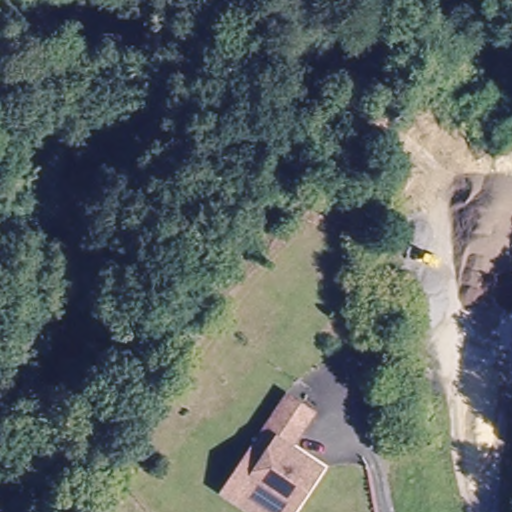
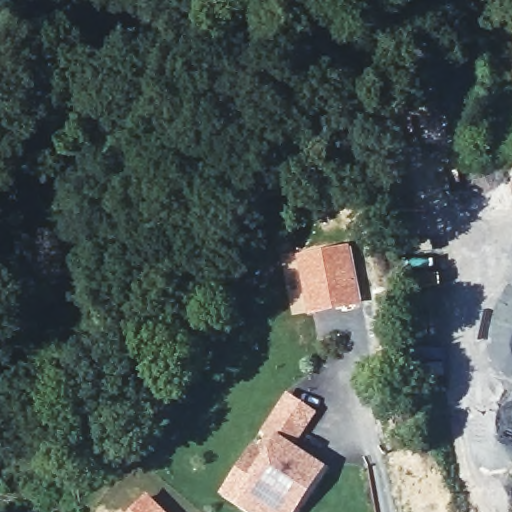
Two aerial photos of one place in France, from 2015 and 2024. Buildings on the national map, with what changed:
new [(351,244),(363,303),(307,313),(295,255),(351,244)]
new [(431,258),(433,272),(439,271),(440,286),(410,288),(407,260),(431,258)]
unchanged [(241,512),(236,508),(219,497),(248,454),(254,458),(266,441),(260,437),(282,402),(306,418),(284,451),(315,472),(299,496),(290,510),(289,512),(241,512)]
new [(167,512),(129,512),(147,493),(167,512)]

